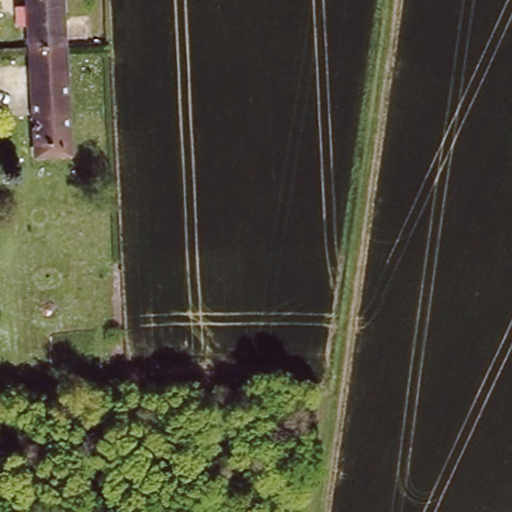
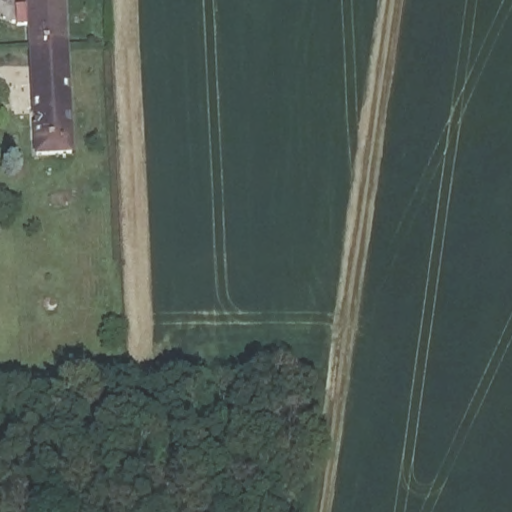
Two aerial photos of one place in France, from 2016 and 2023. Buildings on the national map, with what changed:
unchanged [(29,0),(63,0),(65,47),(30,49),(29,0)]
unchanged [(69,163),(33,163),(30,49),(65,47),(69,163)]

